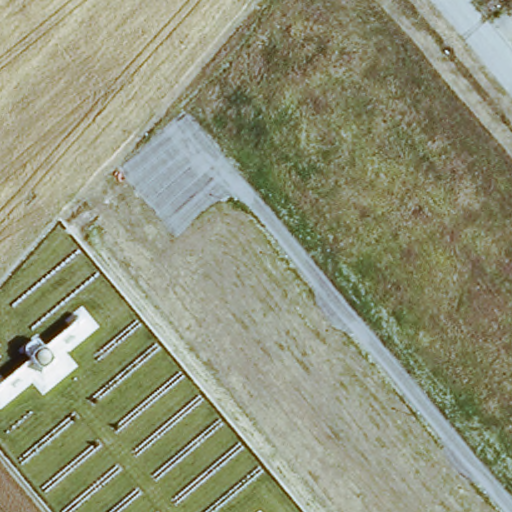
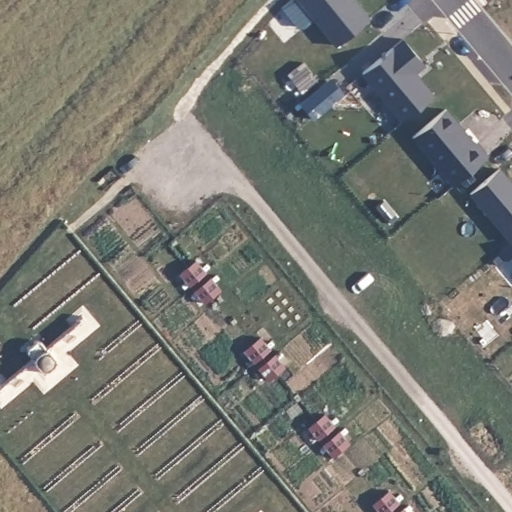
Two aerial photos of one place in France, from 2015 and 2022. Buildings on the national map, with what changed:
new [(367,20),(336,46),(313,20),(302,29),(296,28),(280,9),(291,0),(351,0),(367,20)]
new [(423,65),(412,74),(419,82),(420,81),(433,96),(401,123),(361,74),(402,40),(423,65)]
new [(445,110),(457,126),(463,134),(464,133),(474,145),(476,143),(487,157),(452,186),(412,138),(445,110)]
new [(470,194),(499,170),(512,186),(512,242),(511,243),(470,194)]

